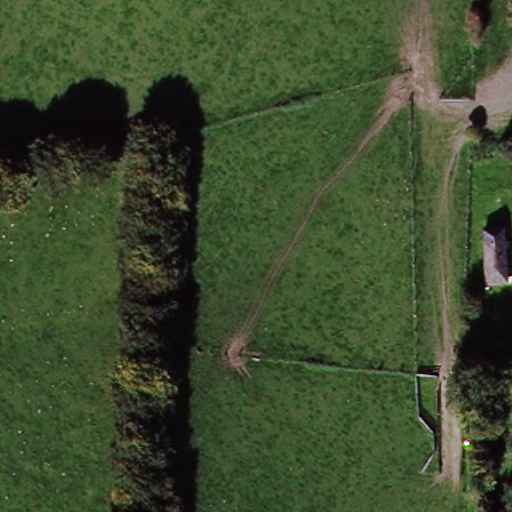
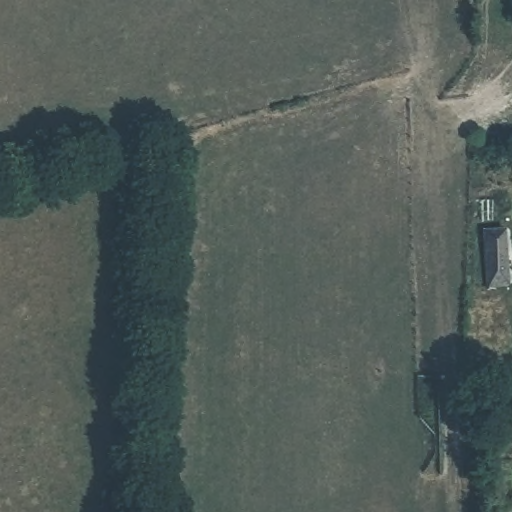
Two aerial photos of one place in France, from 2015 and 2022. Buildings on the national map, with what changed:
unchanged [(508,237),(509,288),(482,289),(482,239),(508,237)]

